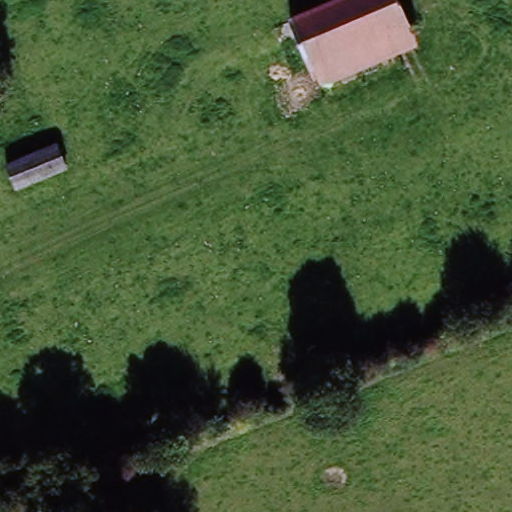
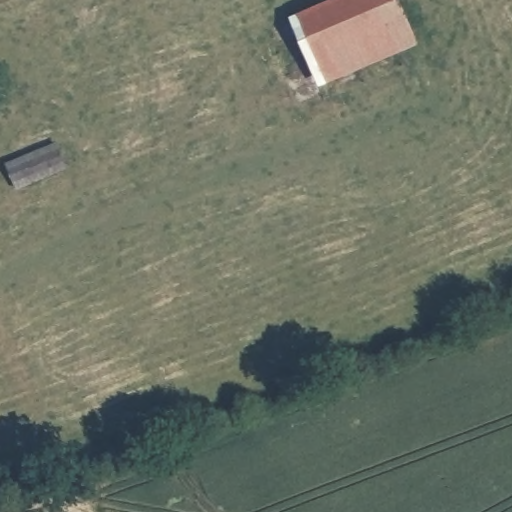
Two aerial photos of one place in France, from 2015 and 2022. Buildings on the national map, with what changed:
unchanged [(339,0),(399,0),(420,47),(321,90),(290,21),(339,0)]
unchanged [(7,163),(60,141),(74,171),(17,193),(7,163)]

